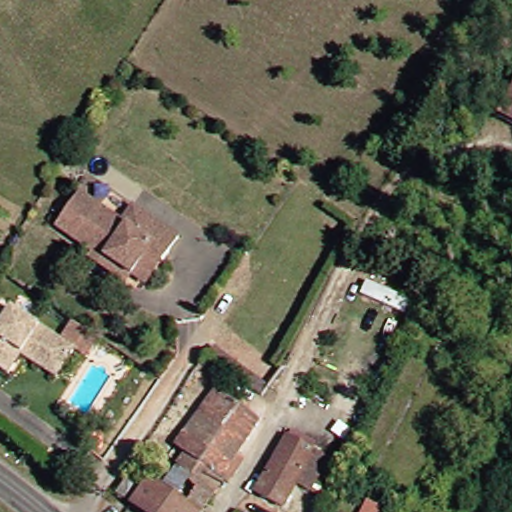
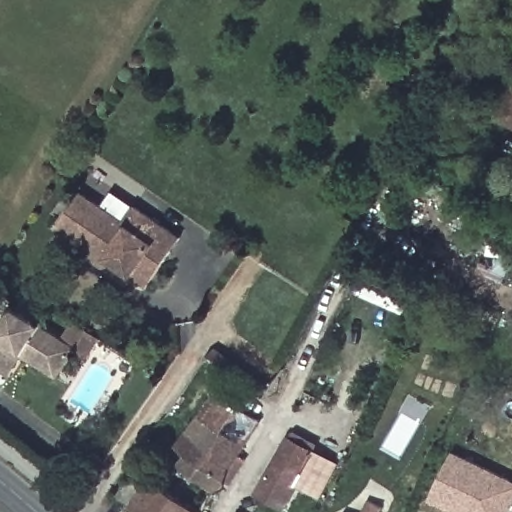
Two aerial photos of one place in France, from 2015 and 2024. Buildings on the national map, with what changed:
unchanged [(512,86),(512,121),(498,114),(512,86)]
unchanged [(127,276),(123,282),(87,257),(90,254),(53,227),(77,192),(123,225),(133,209),(175,237),(156,265),(141,286),(127,276)]
unchanged [(16,357),(5,376),(0,373),(0,321),(7,311),(71,351),(59,370),(53,380),(16,357)]
unchanged [(227,483),(218,477),(217,480),(212,477),(182,457),(173,451),(211,392),(255,421),(233,455),(242,461),(227,483)]
unchanged [(285,435),(312,450),(281,505),(254,490),(285,435)]
new [(435,491),(451,455),(509,482),(512,483),(512,504),(509,512),(451,512),(429,502),(435,491)]
unchanged [(212,477),(191,511),(160,488),(182,457),(212,477)]
unchanged [(130,477),(145,488),(151,481),(160,488),(191,511),(192,512),(138,512),(117,496),(130,477)]
demolished [(374,510),(372,512),(355,512),(359,503),(374,510)]
new [(382,510),(381,512),(363,512),(368,503),(382,510)]

